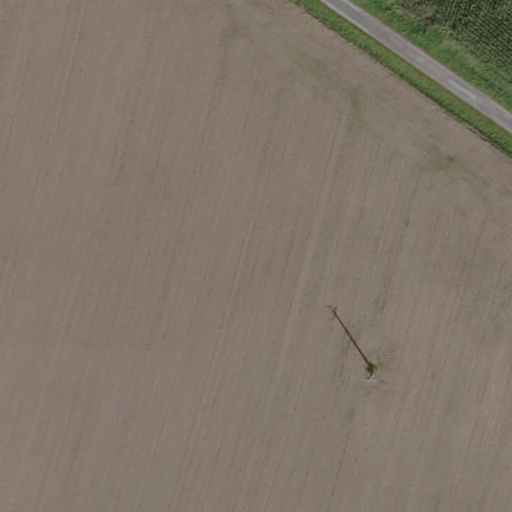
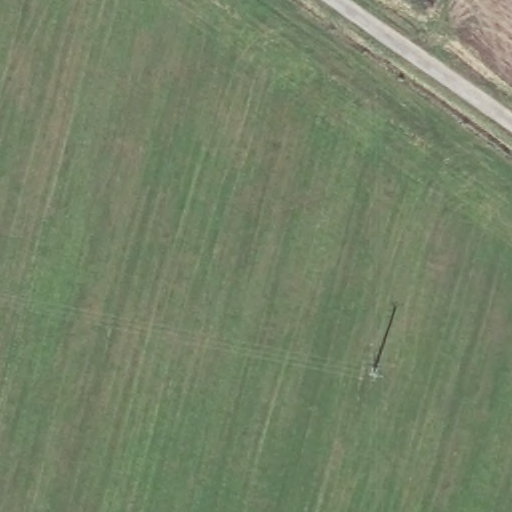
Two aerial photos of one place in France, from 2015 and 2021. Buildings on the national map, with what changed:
[]

